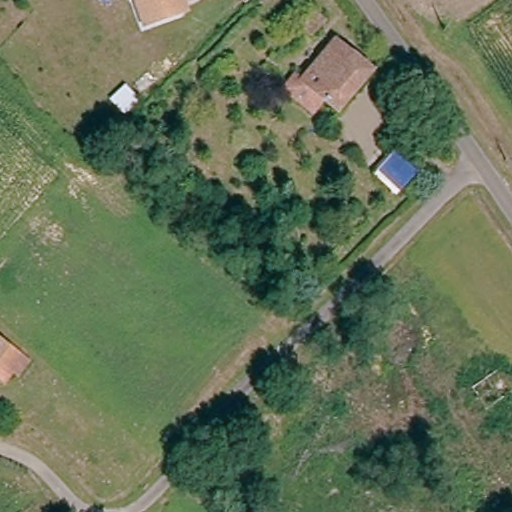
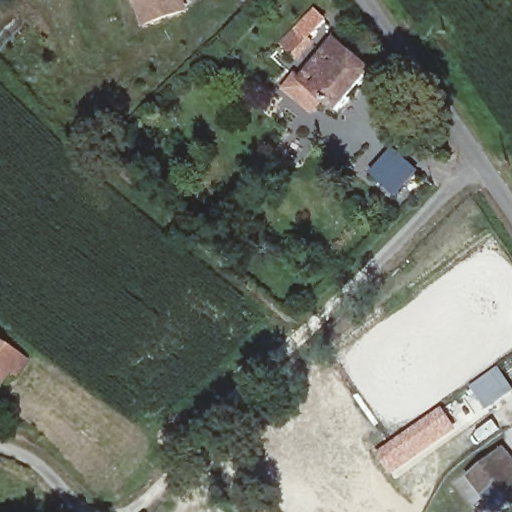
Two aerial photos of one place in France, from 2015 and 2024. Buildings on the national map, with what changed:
unchanged [(143,0),(191,0),(195,9),(153,25),(143,0)]
unchanged [(283,89),(294,76),(300,81),(334,40),(371,70),(337,111),(322,99),(311,112),(283,89)]
unchanged [(422,175),(414,185),(402,198),(379,179),(392,164),(399,156),(422,175)]
unchanged [(18,357),(1,379),(0,379),(0,343),(18,357)]
new [(443,407),(459,430),(392,476),(376,454),(443,407)]
new [(512,502),(508,505),(494,486),(482,496),(468,476),(505,449),(512,458),(512,502)]

